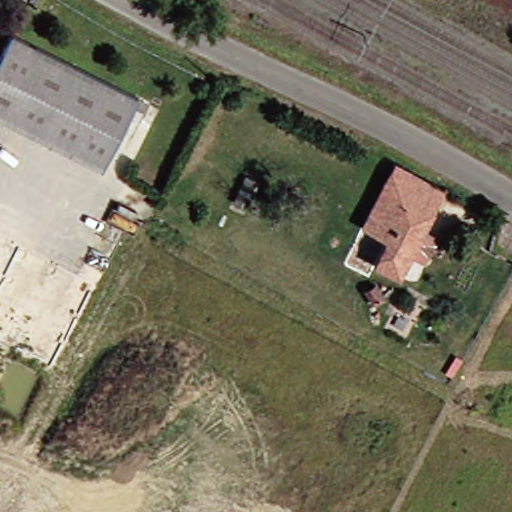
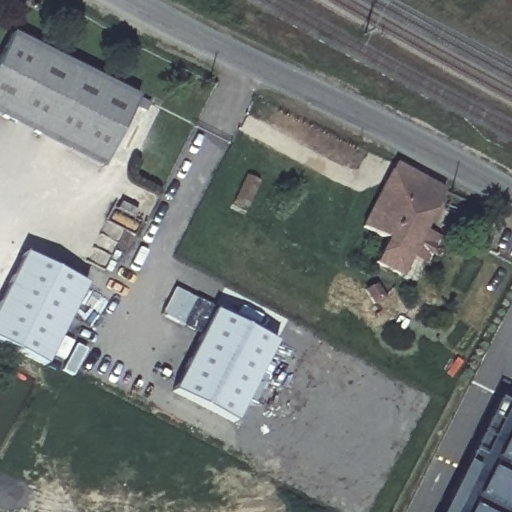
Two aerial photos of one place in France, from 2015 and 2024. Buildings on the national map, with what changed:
unchanged [(131,95),(96,165),(0,117),(0,39),(4,31),(131,95)]
unchanged [(438,189),(395,276),(370,263),(381,239),(357,226),(389,165),(438,189)]
new [(87,286),(47,367),(0,344),(0,303),(24,256),(87,286)]
new [(234,426),(171,393),(211,313),(274,346),(234,426)]
new [(512,406),(512,512),(439,512),(495,397),(512,406)]

